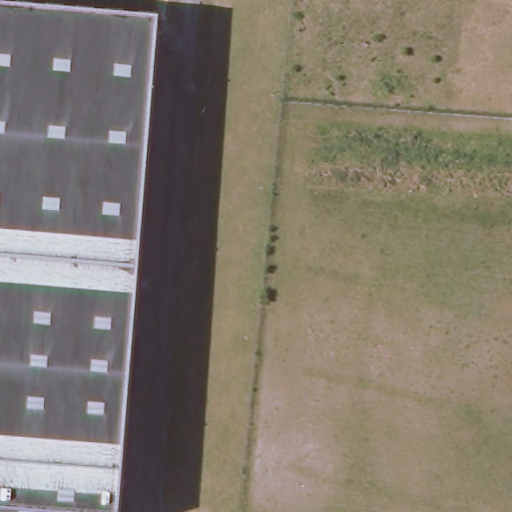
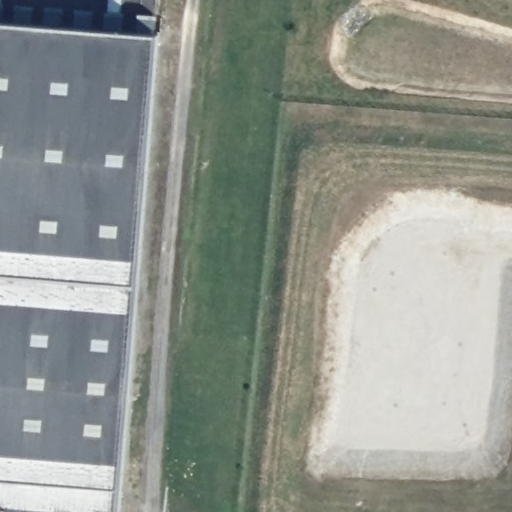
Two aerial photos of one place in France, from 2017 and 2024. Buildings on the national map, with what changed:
unchanged [(118,512),(0,512),(0,23),(158,35),(118,512)]

